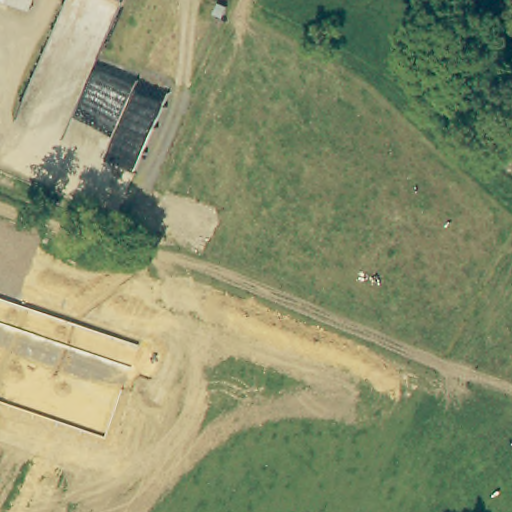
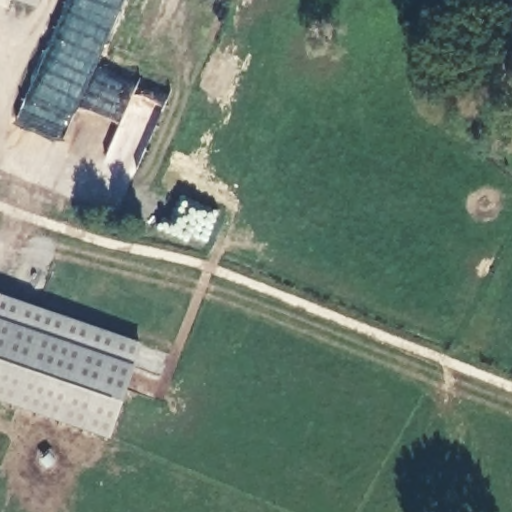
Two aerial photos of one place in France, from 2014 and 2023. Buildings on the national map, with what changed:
new [(107,439),(0,401),(0,296),(141,343),(107,439)]

